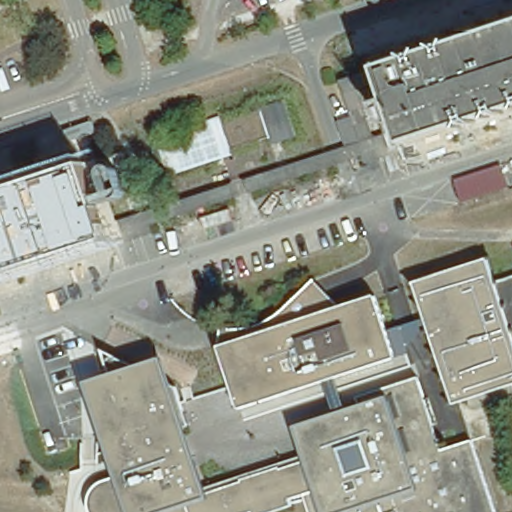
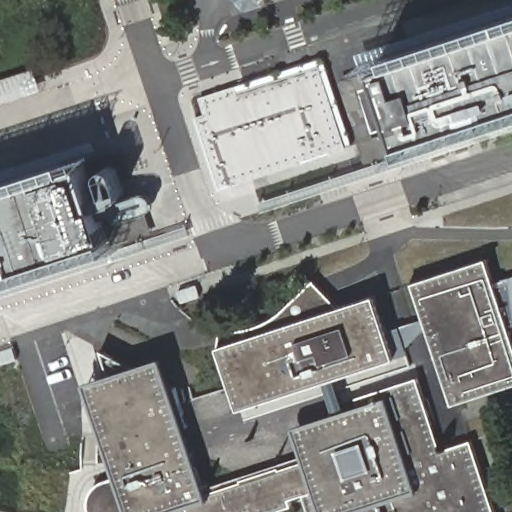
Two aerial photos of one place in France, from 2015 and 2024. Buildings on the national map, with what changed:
unchanged [(512,19),(512,103),(402,139),(378,67),(377,63),(512,19)]
new [(324,58),(353,145),(346,147),(218,189),(194,117),(205,114),(199,97),(235,85),(236,87),(324,58)]
new [(340,80),(378,67),(402,139),(404,150),(363,164),(358,142),(351,116),(340,80)]
new [(42,90),(0,103),(0,79),(35,68),(42,90)]
demolished [(200,166),(188,129),(239,111),(242,120),(270,110),(278,135),(250,145),(245,130),(234,132),(241,152),(200,166)]
unchanged [(0,187),(86,159),(109,235),(0,270),(0,187)]
unchanged [(459,404),(420,281),(495,258),(503,281),(512,279),(512,388),(459,404)]
unchanged [(377,296),(397,360),(292,392),(290,387),(268,393),(267,393),(267,394),(266,394),(265,394),(264,395),(263,395),(262,395),(261,395),(260,395),(259,395),(258,394),(257,393),(256,393),(255,393),(254,392),(253,391),(252,391),(251,390),(250,390),(249,389),(249,388),(248,388),(247,387),(246,386),(246,385),(245,385),(244,384),(244,383),(243,382),(243,381),(220,346),(220,330),(221,330),(222,330),(223,330),(224,330),(225,330),(226,330),(228,330),(229,330),(230,330),(231,330),(233,330),(234,330),(235,330),(237,330),(239,330),(240,330),(242,329),(244,328),(246,328),(248,327),(250,327),(252,326),(254,325),(256,325),(258,325),(260,323),(262,323),(264,322),(265,321),(267,321),(268,320),(270,320),(271,319),(272,318),(273,317),(274,317),(275,316),(276,315),(277,315),(278,314),(279,313),(280,312),(281,311),(282,310),(301,292),(315,278),(338,304),(342,308),(377,296)]
unchanged [(356,405),(418,384),(443,456),(472,445),(495,512),(309,512),(306,503),(293,508),(295,512),(92,512),(91,511),(90,507),(91,504),(92,498),(95,493),(98,490),(101,487),(105,485),(110,483),(116,483),(120,484),(89,389),(162,364),(206,493),(306,461),(297,433),(360,412),(356,405)]

